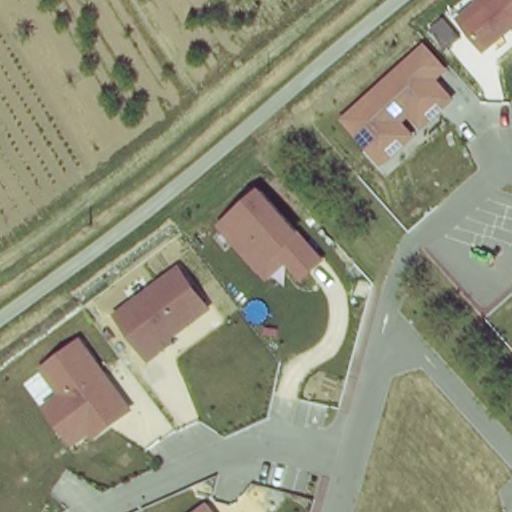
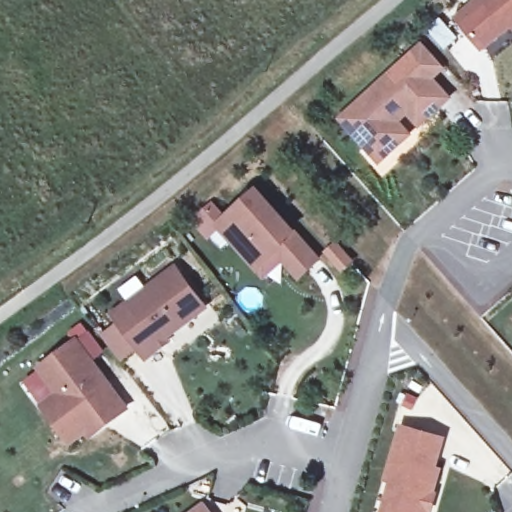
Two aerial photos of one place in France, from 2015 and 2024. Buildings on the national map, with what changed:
unchanged [(512,35),(507,32),(480,54),(455,17),(475,0),(512,0),(512,35)]
unchanged [(424,42),(448,69),(437,78),(456,97),(381,166),(340,120),(424,42)]
unchanged [(258,186),(302,236),(323,260),(297,283),(280,264),(263,280),(215,225),(258,186)]
unchanged [(109,315),(175,264),(209,308),(167,339),(170,344),(144,363),(109,315)]
unchanged [(87,442),(84,436),(68,449),(40,409),(53,393),(37,370),(80,335),(132,408),(87,442)]
new [(432,470),(437,471),(426,512),(385,512),(393,482),(389,480),(402,429),(440,439),(432,470)]
unchanged [(214,512),(193,512),(206,502),(214,512)]

